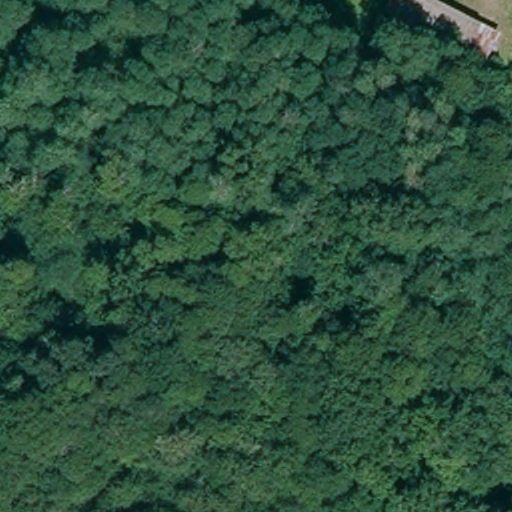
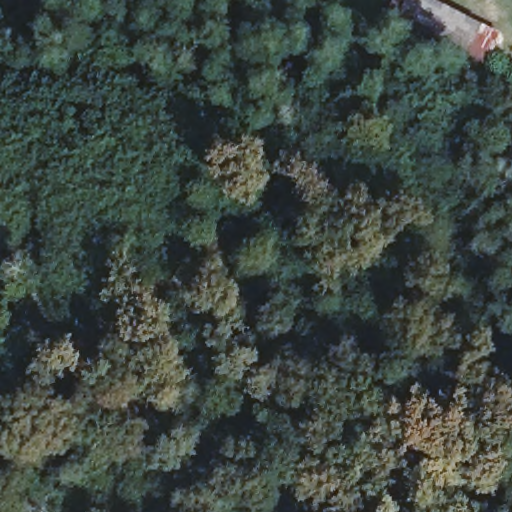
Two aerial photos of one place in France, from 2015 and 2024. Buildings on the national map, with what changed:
unchanged [(483,64),(384,10),(388,0),(441,0),(498,29),(483,64)]

